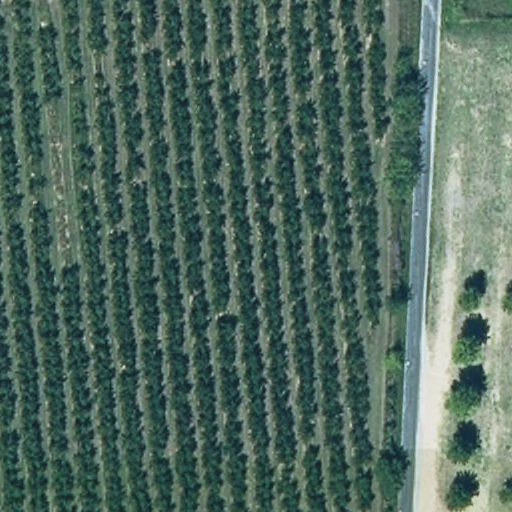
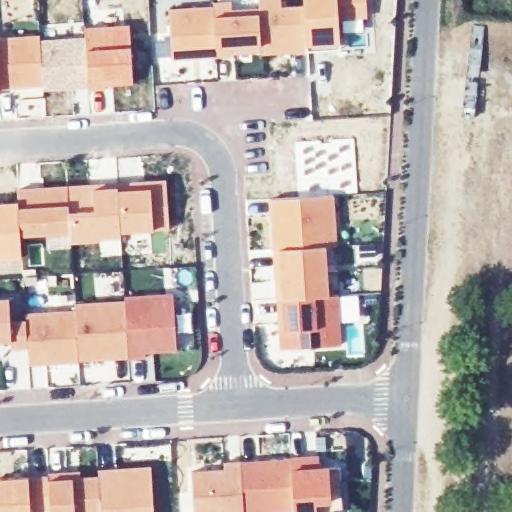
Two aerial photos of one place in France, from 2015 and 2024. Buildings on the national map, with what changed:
new [(262,55),(262,51),(235,54),(235,57),(217,58),(217,49),(215,15),(214,1),(233,0),(234,8),(259,7),(259,0),(282,0),(282,6),(304,5),(307,51),(262,55)]
new [(44,90),(44,85),(0,90),(0,37),(40,35),(41,40),(87,35),(90,88),(44,90)]
new [(169,230),(153,230),(122,232),(122,236),(101,237),(101,242),(71,244),(70,233),(20,235),(19,206),(18,188),(167,180),(169,230)]
new [(337,245),(325,245),(279,249),(278,215),(270,215),(270,197),(333,195),(337,245)]
new [(330,295),(358,293),(360,320),(340,321),(342,344),(280,348),(273,249),(279,249),(325,245),(330,295)]
new [(25,318),(25,312),(75,310),(75,302),(125,300),(125,296),(173,292),(177,351),(149,352),(149,358),(80,360),(80,362),(29,365),(27,348),(12,349),(11,342),(0,343),(0,297),(8,297),(10,320),(25,318)]
new [(322,466),(330,465),(330,467),(340,467),(344,511),(338,512),(294,512),(294,511),(284,512),(194,512),(191,471),(225,468),(225,461),(319,455),(322,466)]
new [(50,511),(41,512),(0,512),(0,477),(28,475),(80,470),(81,476),(99,474),(99,468),(151,466),(155,512),(51,512),(50,511)]

